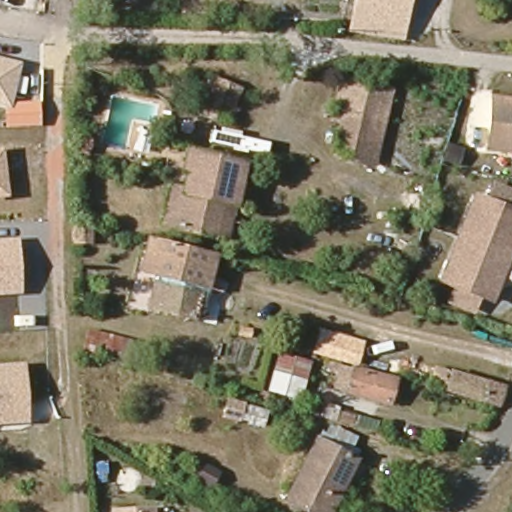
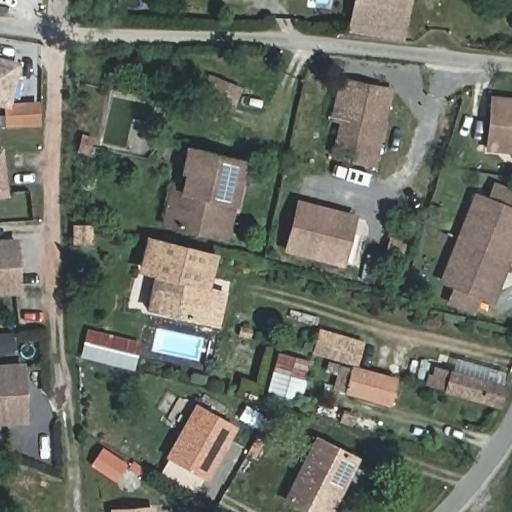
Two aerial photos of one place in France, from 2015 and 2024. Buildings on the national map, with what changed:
unchanged [(351,29),(356,0),(374,0),(407,6),(401,37),(351,29)]
unchanged [(374,0),(408,0),(407,6),(374,0)]
unchanged [(38,101),(40,125),(4,127),(4,106),(0,105),(0,56),(21,61),(12,102),(38,101)]
unchanged [(226,119),(203,112),(198,111),(210,80),(211,80),(238,89),(226,119)]
unchanged [(366,160),(336,154),(345,117),(334,115),(342,80),(353,82),(384,88),(392,90),(375,162),(366,160)]
unchanged [(487,148),(492,97),(512,100),(512,150),(487,148)]
unchanged [(82,135),(92,137),(88,154),(78,152),(82,135)]
unchanged [(0,147),(2,147),(9,196),(0,197),(0,147)]
unchanged [(217,237),(164,224),(172,185),(184,188),(188,169),(184,168),(188,150),(243,163),(238,184),(226,239),(217,237)]
unchanged [(459,238),(476,195),(492,201),(498,187),(512,192),(512,205),(511,208),(512,208),(512,250),(509,257),(459,238)]
new [(344,267),(284,252),(296,199),(357,215),(344,267)]
unchanged [(89,225),(89,242),(73,242),(72,225),(89,225)]
unchanged [(0,238),(16,237),(21,293),(0,295),(0,238)]
unchanged [(452,302),(458,287),(442,281),(459,238),(509,257),(492,301),(476,295),(470,309),(452,302)]
unchanged [(229,297),(222,329),(155,312),(162,278),(151,276),(159,243),(221,258),(214,282),(212,291),(212,292),(229,297)]
unchanged [(130,367),(81,354),(88,328),(137,341),(130,367)]
unchanged [(360,362),(320,351),(326,332),(366,343),(360,362)]
unchanged [(300,398),(269,390),(279,355),(309,363),(300,398)]
unchanged [(396,404),(340,388),(343,373),(331,371),(334,361),(402,381),(396,404)]
unchanged [(26,421),(0,422),(0,367),(23,366),(26,421)]
unchanged [(430,377),(434,378),(437,368),(503,388),(498,405),(428,384),(430,377)]
unchanged [(352,426),(343,423),(336,422),(313,416),(317,401),(339,407),(338,411),(355,417),(356,414),(379,420),(376,431),(352,426)]
new [(207,482),(203,480),(195,493),(157,472),(196,403),(238,427),(207,482)]
unchanged [(264,425),(243,418),(246,407),(268,412),(264,425)]
unchanged [(286,504),(317,444),(321,436),(359,456),(355,464),(332,512),(302,512),(286,504)]
unchanged [(154,509),(154,512),(112,512),(154,509)]

